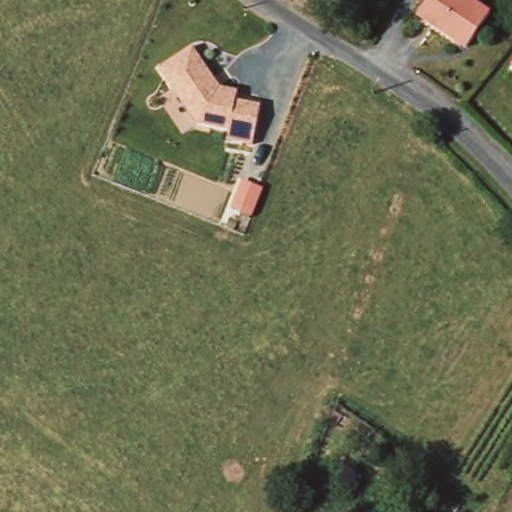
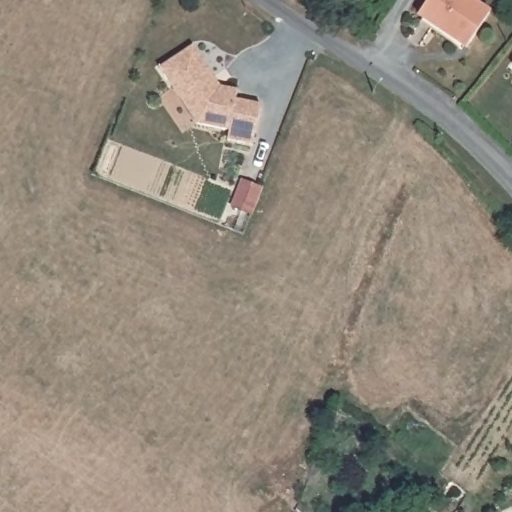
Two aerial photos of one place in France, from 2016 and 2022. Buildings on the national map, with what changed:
unchanged [(491,12),(467,50),(414,14),(422,0),(472,0),(491,12)]
unchanged [(226,141),(228,130),(196,124),(159,67),(191,45),(220,85),(236,88),(234,98),(259,102),(252,145),(226,141)]

